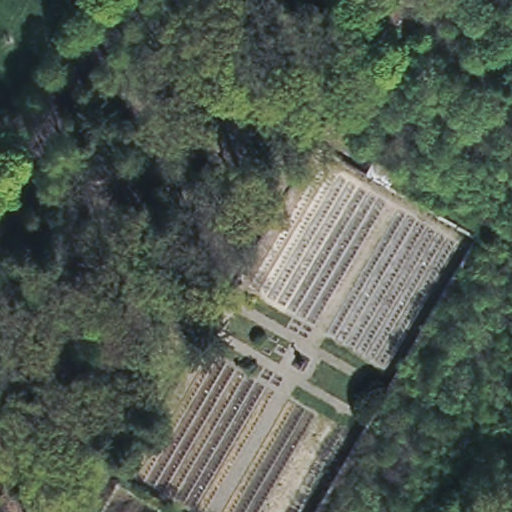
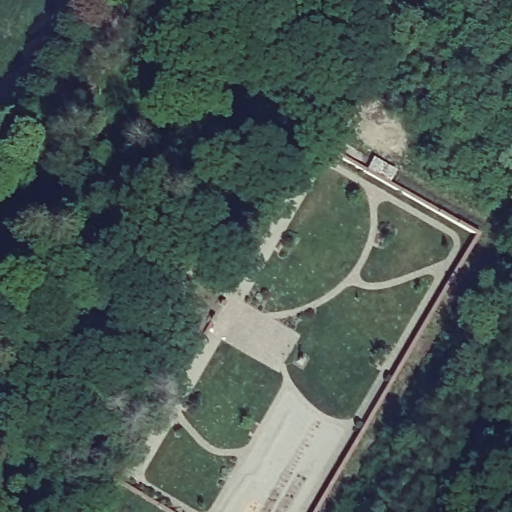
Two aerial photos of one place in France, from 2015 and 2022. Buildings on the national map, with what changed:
unchanged [(374,159),(395,170),(388,185),(366,173),(374,159)]

